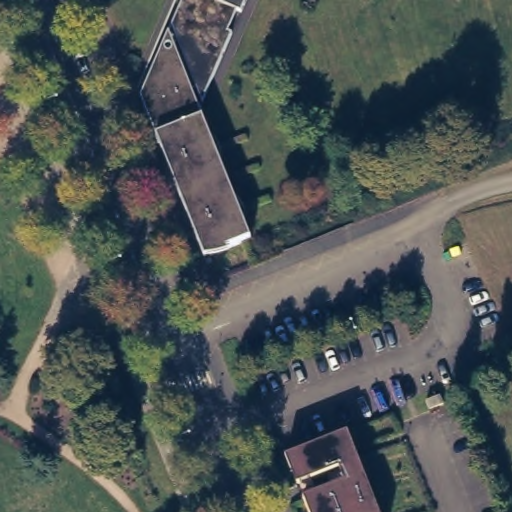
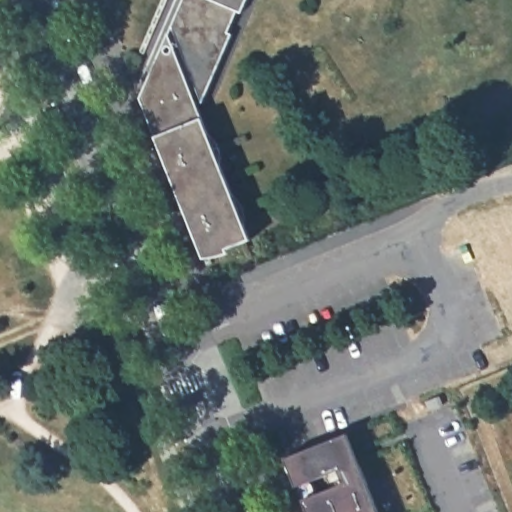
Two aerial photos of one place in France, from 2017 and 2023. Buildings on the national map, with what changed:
unchanged [(247,8),(236,3),(226,24),(238,29),(208,99),(183,37),(188,27),(185,26),(181,24),(179,20),(179,16),(181,12),(184,10),(188,9),(191,9),(195,0),(250,0),(247,8)]
unchanged [(156,102),(149,86),(166,48),(181,54),(253,236),(221,249),(214,234),(208,236),(196,206),(203,203),(191,173),(184,176),(173,145),(178,143),(161,100),(156,102)]
unchanged [(426,401),(441,396),(444,404),(429,410),(426,401)]
unchanged [(303,495),(296,482),(288,486),(284,475),(289,473),(293,481),(296,480),(286,453),(348,429),(359,456),(381,512),(310,512),(304,495),(303,495)]

